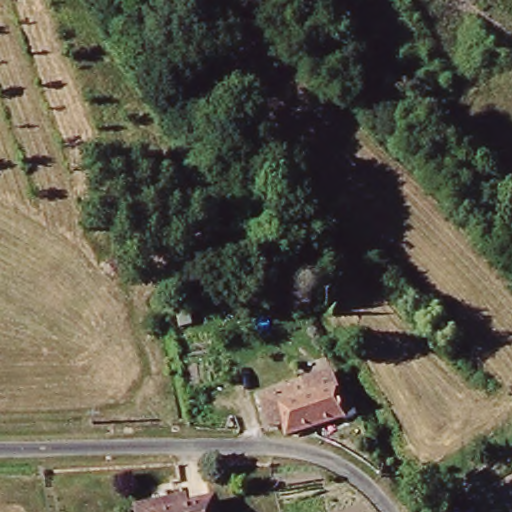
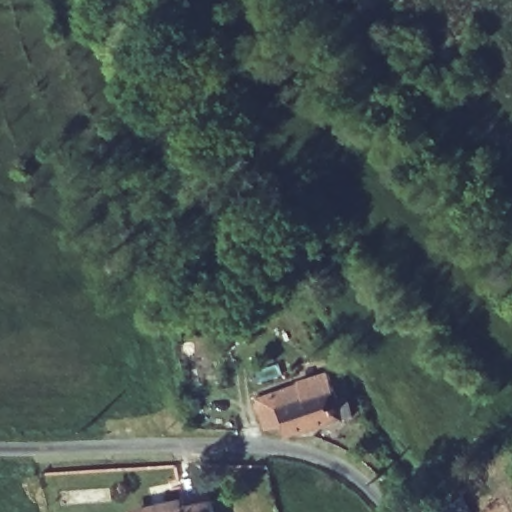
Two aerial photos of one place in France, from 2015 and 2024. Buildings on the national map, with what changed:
unchanged [(323,363),(335,388),(341,392),(347,407),(340,410),(337,405),(277,425),(273,414),(261,416),(253,388),(323,363)]
unchanged [(182,498),(182,508),(211,506),(211,512),(143,512),(144,499),(182,498)]

